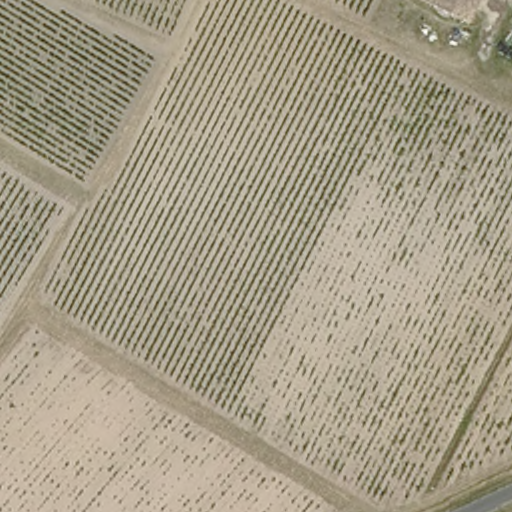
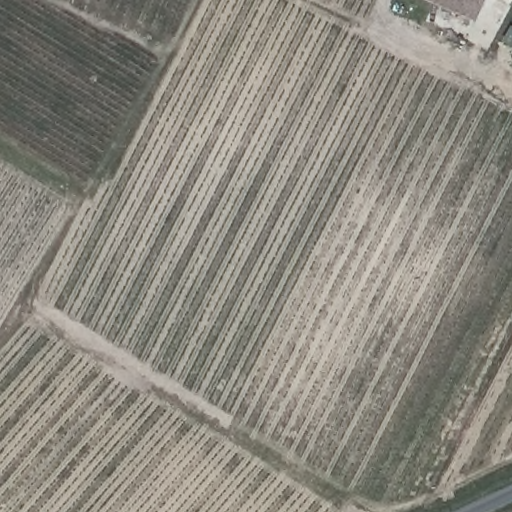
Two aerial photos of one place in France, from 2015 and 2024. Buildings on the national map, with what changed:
unchanged [(431,2),(427,0),(432,0),(431,2)]
unchanged [(470,20),(431,2),(432,0),(479,0),(470,20)]

